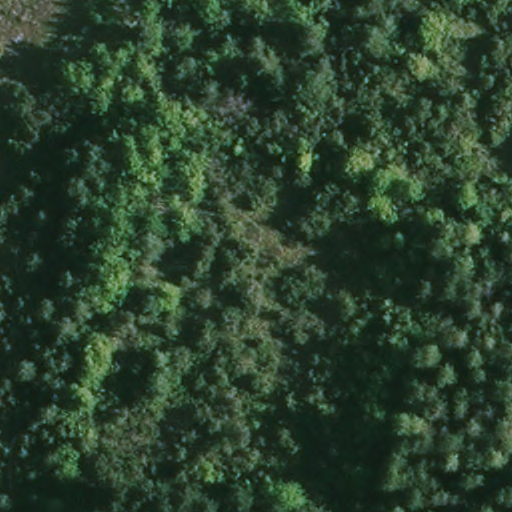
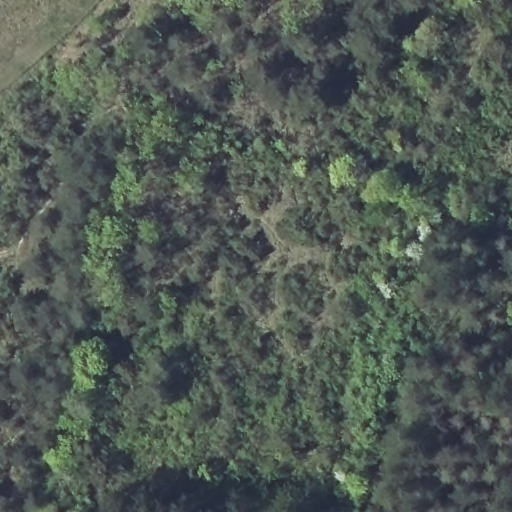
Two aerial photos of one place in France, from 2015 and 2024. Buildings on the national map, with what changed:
[]

